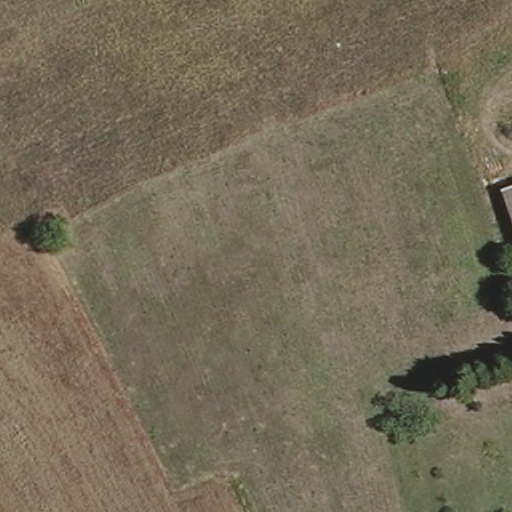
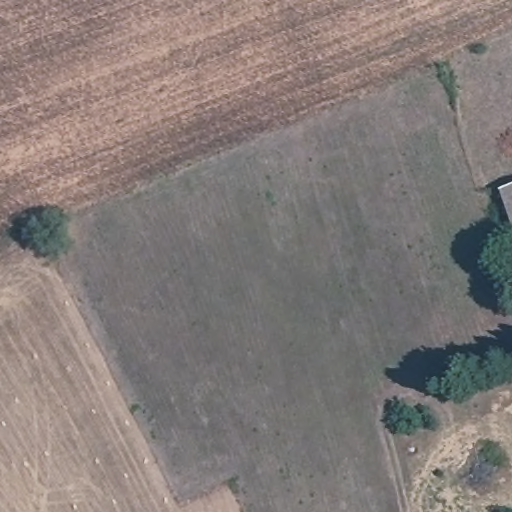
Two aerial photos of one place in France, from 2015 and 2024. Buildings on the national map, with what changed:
unchanged [(512,212),(502,187),(512,183),(512,212)]

